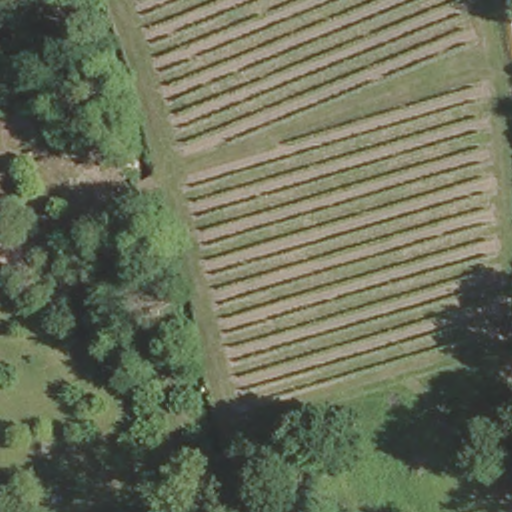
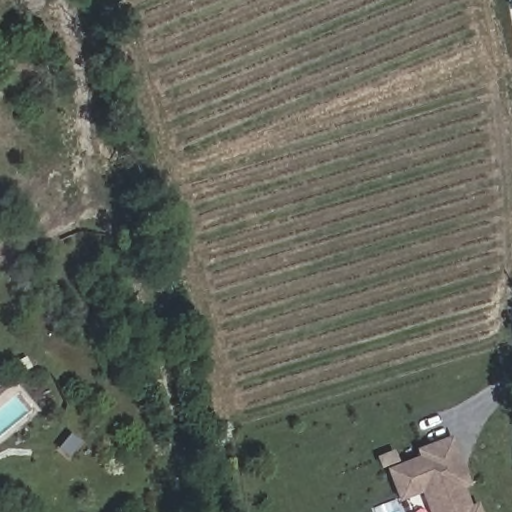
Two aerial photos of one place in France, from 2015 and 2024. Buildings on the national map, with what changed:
new [(400,501),(385,466),(380,467),(376,457),(393,450),(398,465),(418,457),(416,450),(452,435),(471,486),(465,489),(471,506),(479,503),(482,512),(430,512),(422,492),(400,501)]

